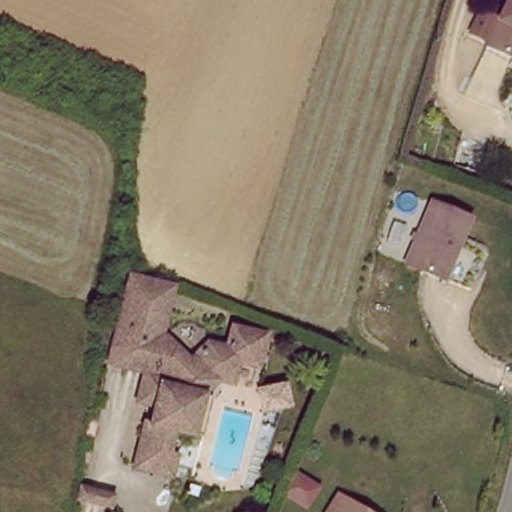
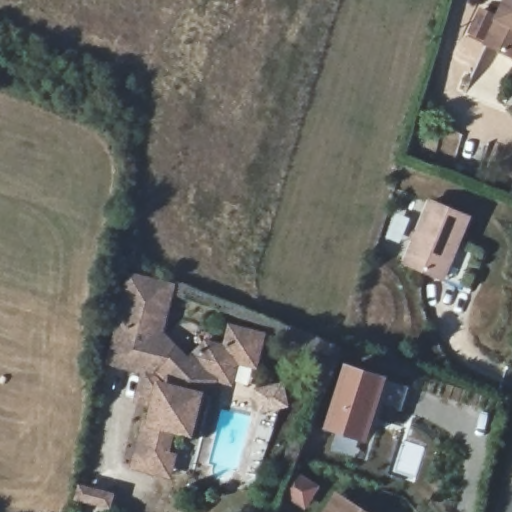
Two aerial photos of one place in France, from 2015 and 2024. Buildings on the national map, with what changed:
unchanged [(502,0),(512,0),(512,54),(482,40),(502,0)]
unchanged [(468,215),(442,277),(405,260),(430,200),(468,215)]
unchanged [(170,472),(131,460),(137,442),(145,416),(148,417),(153,400),(137,395),(142,380),(145,366),(110,356),(133,277),(135,270),(157,276),(177,282),(174,292),(163,328),(190,357),(207,340),(228,345),(234,325),(267,334),(258,365),(237,360),(231,380),(218,376),(203,391),(213,395),(202,434),(191,431),(173,426),(166,450),(175,452),(170,472)]
new [(368,443),(325,428),(345,363),(390,377),(368,443)]
unchanged [(323,511),(334,490),(375,512),(323,512),(323,511)]

